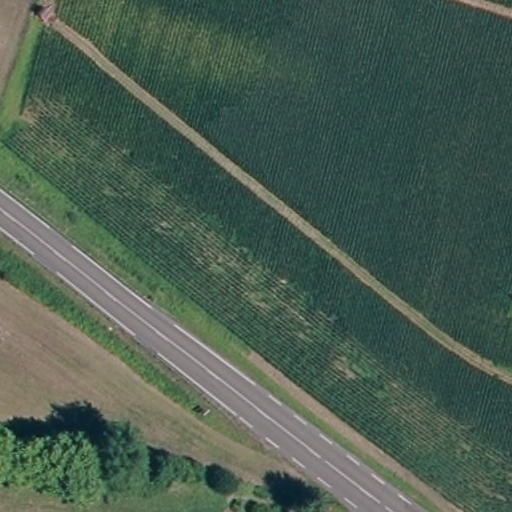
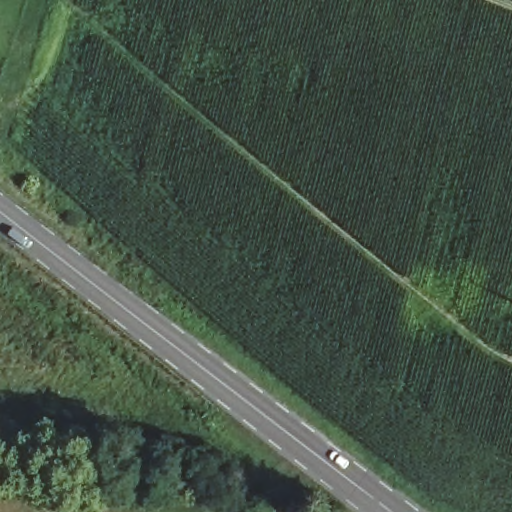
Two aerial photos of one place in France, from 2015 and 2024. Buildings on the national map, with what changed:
[]

